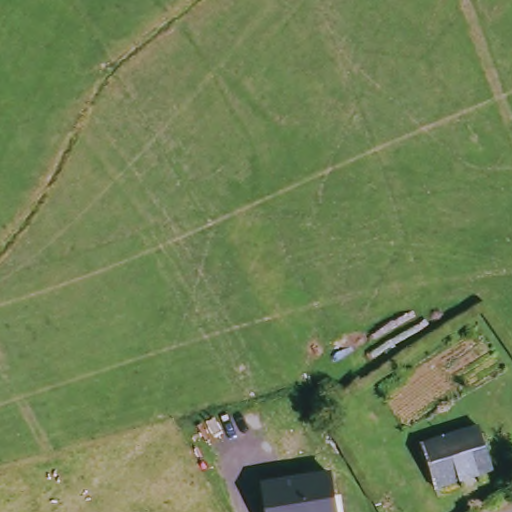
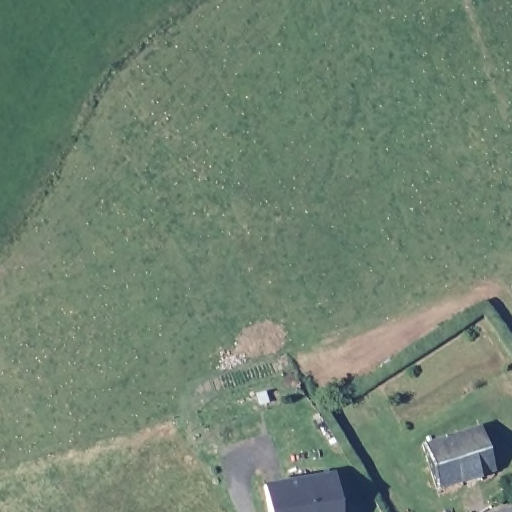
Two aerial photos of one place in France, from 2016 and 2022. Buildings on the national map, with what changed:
unchanged [(482,430),(486,433),(495,472),(439,489),(425,446),(482,430)]
unchanged [(265,487),(335,476),(341,512),(269,512),(265,487)]

